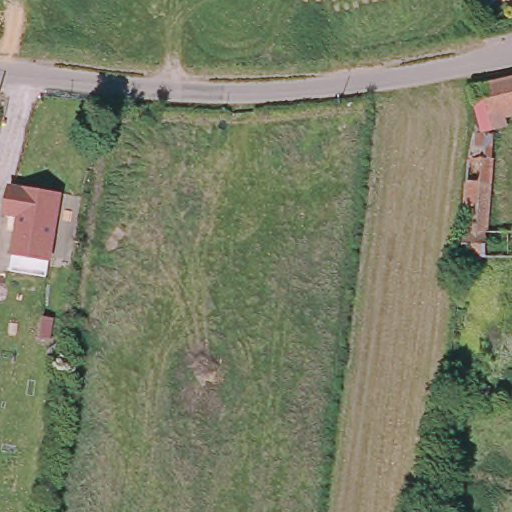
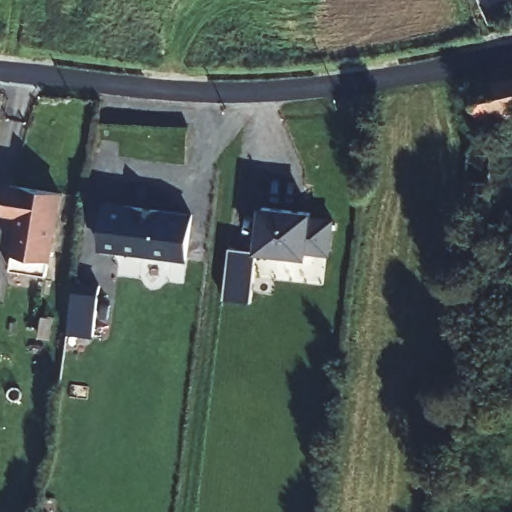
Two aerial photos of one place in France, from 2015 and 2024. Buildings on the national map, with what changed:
unchanged [(508,117),(510,125),(479,133),(475,116),(467,90),(512,80),(512,116),(508,117)]
unchanged [(473,139),(493,141),(489,232),(487,256),(461,255),(473,139)]
unchanged [(12,252),(18,217),(3,214),(9,181),(63,191),(53,257),(45,275),(10,270),(12,252)]
new [(196,215),(189,265),(101,251),(108,204),(196,215)]
new [(315,214),(314,220),(336,221),(332,258),(309,256),(308,260),(258,254),(263,208),(315,214)]

